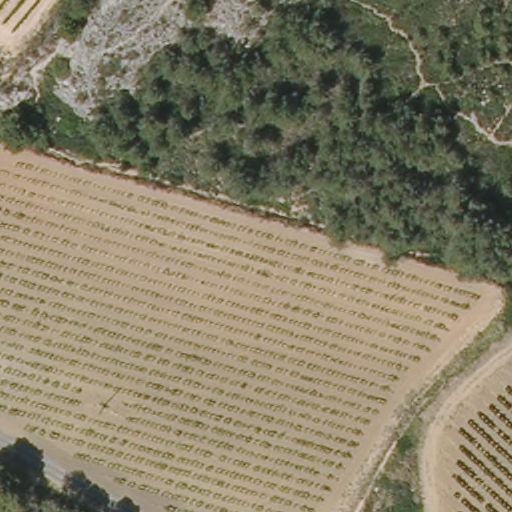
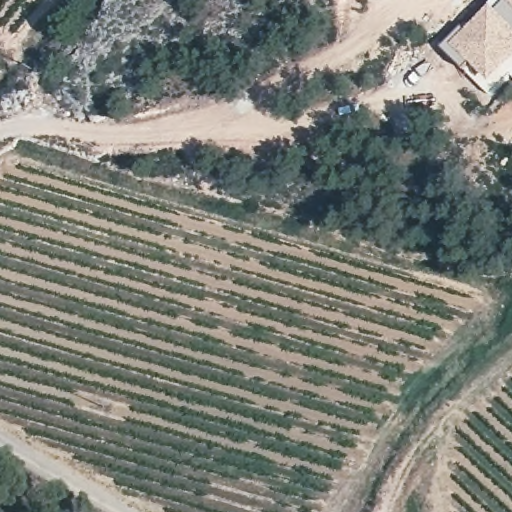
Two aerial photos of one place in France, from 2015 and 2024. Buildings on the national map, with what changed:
new [(493,0),(512,0),(512,68),(495,88),(489,94),(442,46),(446,43),(479,14),(493,0)]

